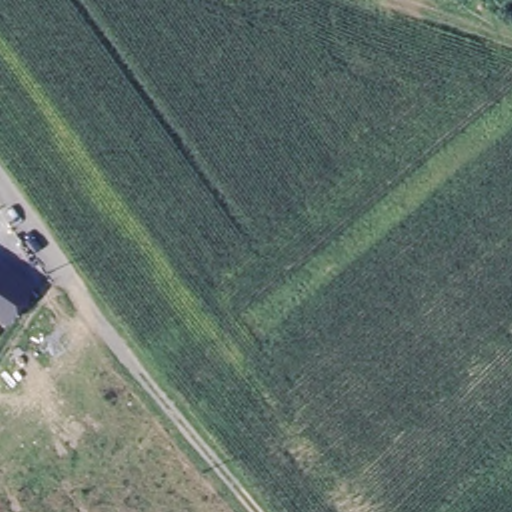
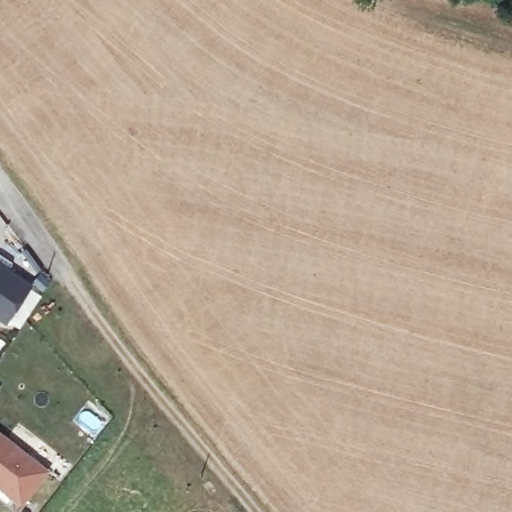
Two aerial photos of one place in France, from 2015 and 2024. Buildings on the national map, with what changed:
unchanged [(9,324),(0,318),(0,261),(35,285),(9,324)]
new [(22,506),(0,489),(0,437),(47,473),(22,506)]

